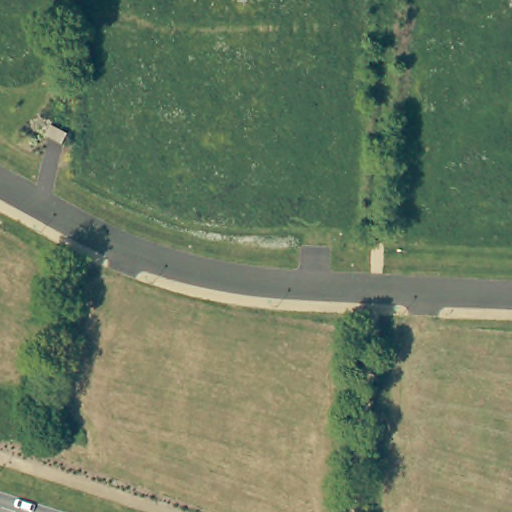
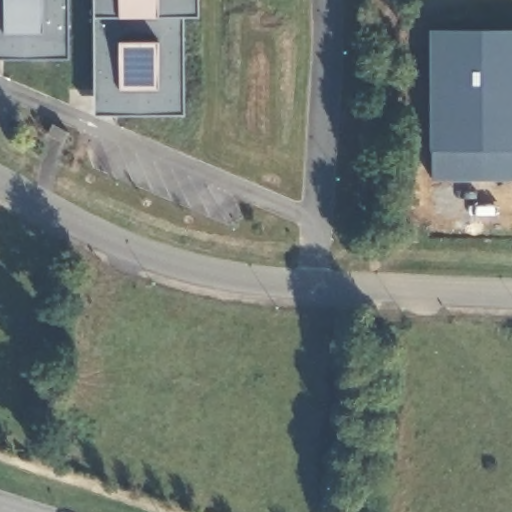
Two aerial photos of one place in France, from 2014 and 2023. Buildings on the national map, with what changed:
new [(0,58),(0,0),(68,0),(68,57),(0,58)]
new [(185,15),(184,114),(95,115),(96,16),(94,16),(94,0),(198,0),(198,15),(185,15)]
new [(512,180),(432,180),(427,29),(512,27),(512,180)]
unchanged [(63,142),(47,134),(52,124),(69,132),(63,142)]

